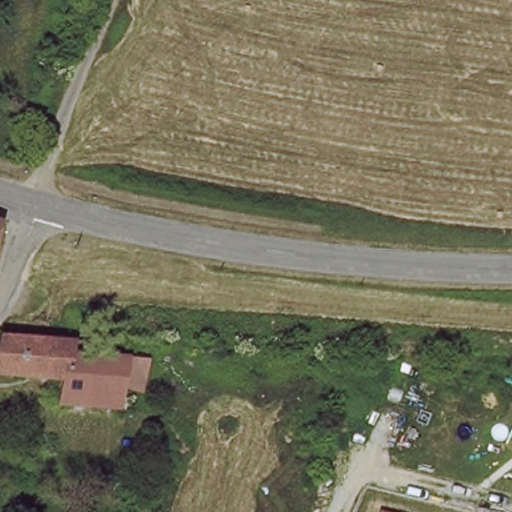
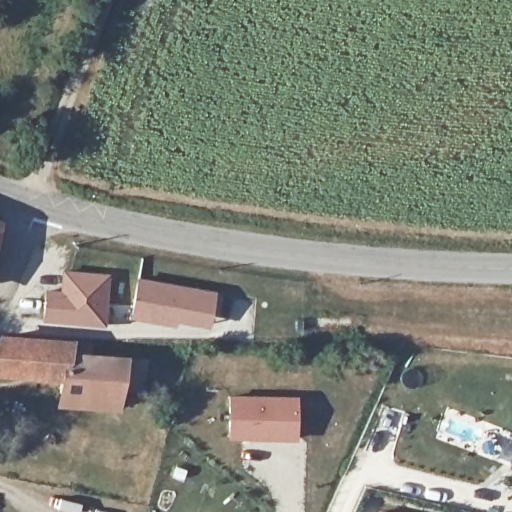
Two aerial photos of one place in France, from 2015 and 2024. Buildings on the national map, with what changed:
unchanged [(7,220),(0,241),(0,218),(7,220)]
new [(43,287),(60,288),(62,269),(111,273),(107,329),(40,323),(43,287)]
new [(137,277),(218,290),(212,328),(177,322),(176,327),(131,320),(137,277)]
unchanged [(78,362),(138,365),(135,394),(117,392),(114,409),(57,406),(58,388),(0,385),(0,353),(77,356),(78,362)]
new [(226,438),(227,395),(296,396),(294,440),(226,438)]
unchanged [(384,512),(379,512),(379,511),(384,512)]

